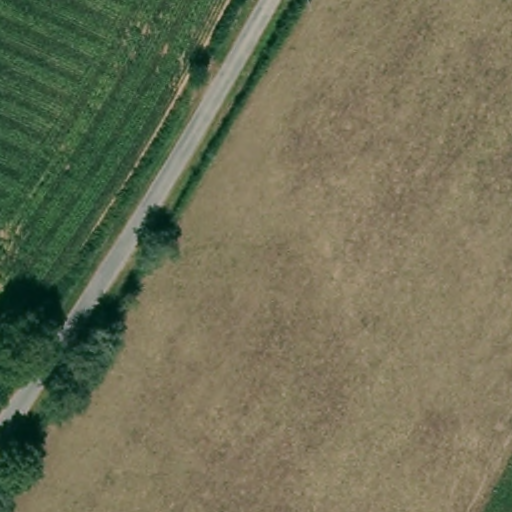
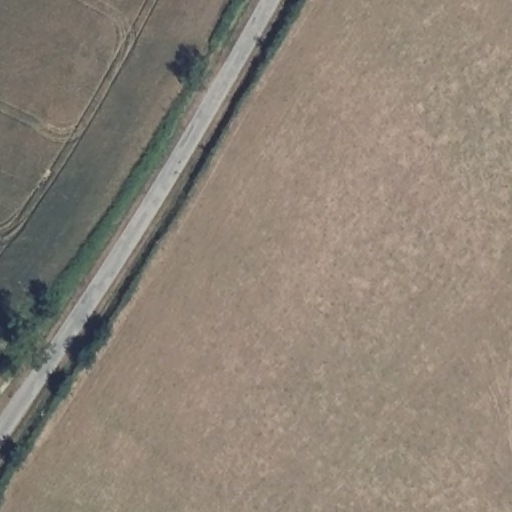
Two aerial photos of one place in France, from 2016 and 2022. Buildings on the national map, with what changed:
[]

